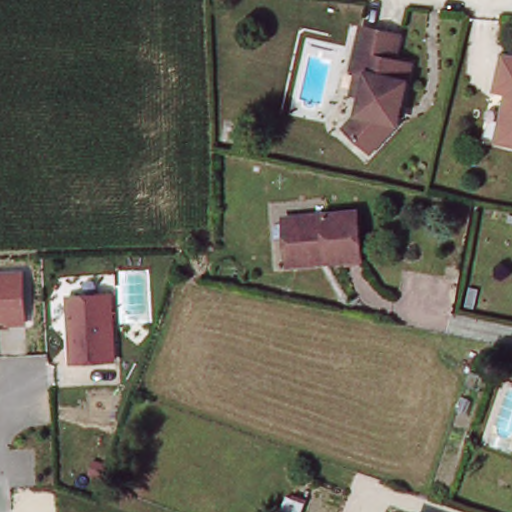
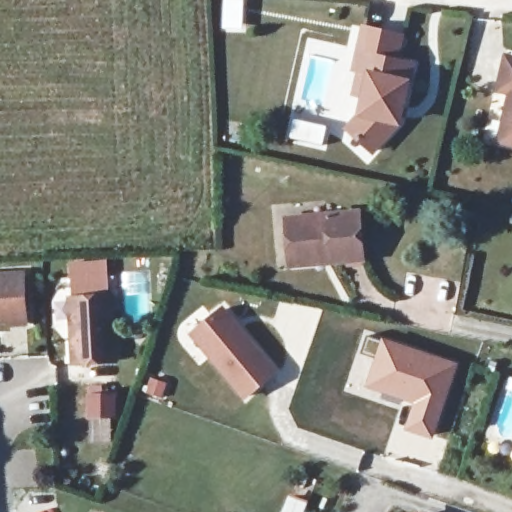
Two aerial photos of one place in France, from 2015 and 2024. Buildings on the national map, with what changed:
unchanged [(369,25),(404,31),(402,57),(417,59),(405,118),(379,147),(355,125),(369,110),(372,93),(362,92),(365,68),(361,68),(369,25)]
unchanged [(507,92),(497,89),(505,55),(512,57),(512,144),(505,142),(495,140),(500,120),(507,92)]
unchanged [(291,255),(288,218),(362,212),(365,262),(334,264),(292,267),(291,255)]
new [(68,261),(105,259),(107,295),(70,297),(68,261)]
unchanged [(25,271),(27,323),(0,326),(0,273),(25,271)]
unchanged [(114,295),(117,361),(73,363),(70,297),(114,295)]
new [(187,333),(222,306),(277,372),(242,402),(187,333)]
new [(382,336),(460,362),(432,440),(403,430),(412,404),(363,387),(382,336)]
unchanged [(430,512),(421,512),(422,509),(430,512)]

